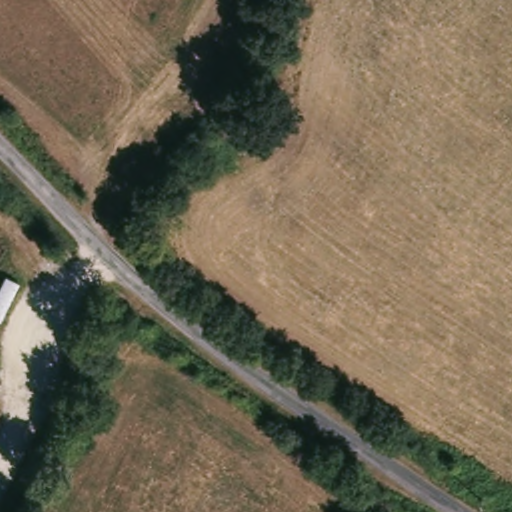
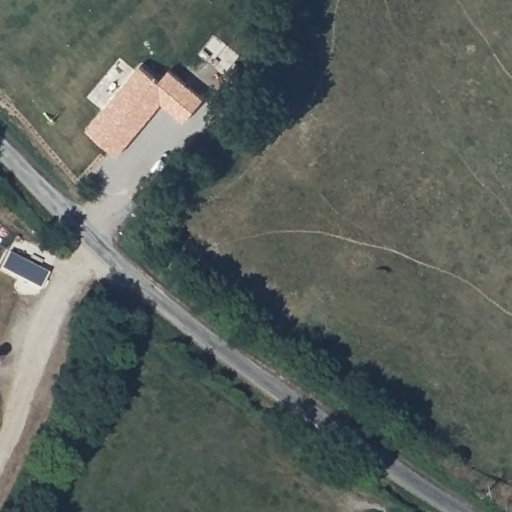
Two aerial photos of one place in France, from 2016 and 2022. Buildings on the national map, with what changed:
new [(87,130),(142,64),(162,79),(171,69),(204,96),(184,121),(162,102),(119,153),(87,130)]

